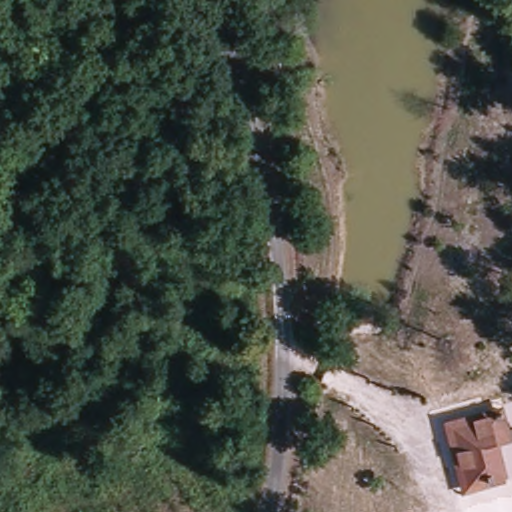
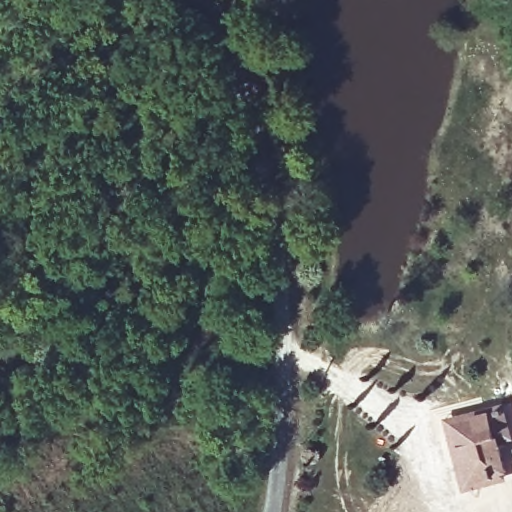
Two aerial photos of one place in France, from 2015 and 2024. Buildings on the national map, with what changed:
unchanged [(462,493),(459,483),(442,425),(493,409),(499,430),(491,431),(502,472),(504,481),(462,493)]

